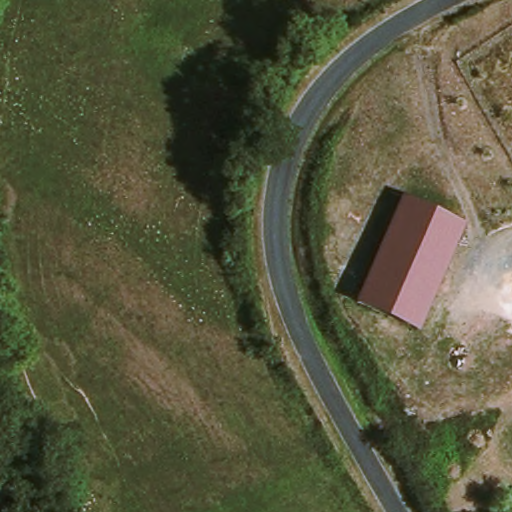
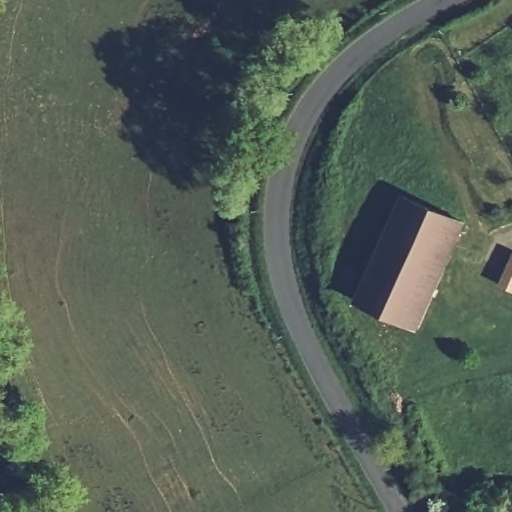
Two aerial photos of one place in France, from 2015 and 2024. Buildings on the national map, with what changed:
unchanged [(468,223),(423,328),(363,301),(408,197),(468,223)]
new [(499,286),(512,258),(512,293),(499,286)]

